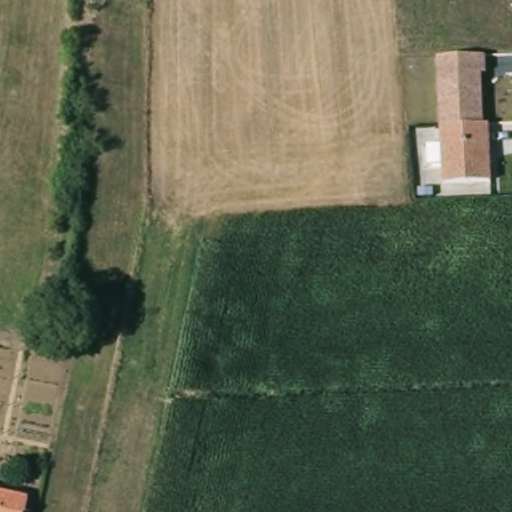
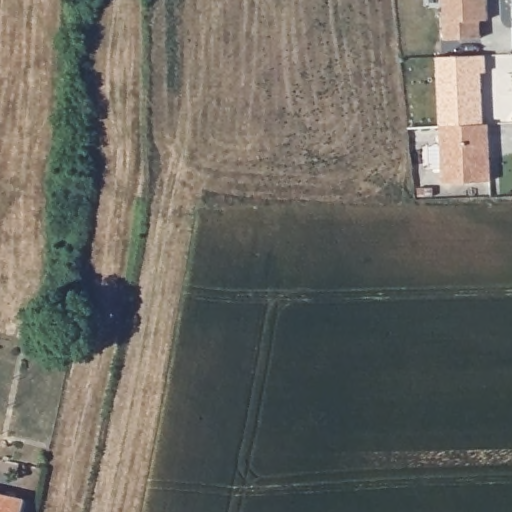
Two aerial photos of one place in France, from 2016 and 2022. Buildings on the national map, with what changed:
new [(489,22),(481,22),(482,40),(445,40),(444,0),(488,0),(489,22)]
unchanged [(486,57),(487,76),(483,76),(485,126),(489,125),(491,183),(445,187),(436,61),(486,57)]
unchanged [(25,501),(23,512),(0,512),(0,496),(25,501)]

